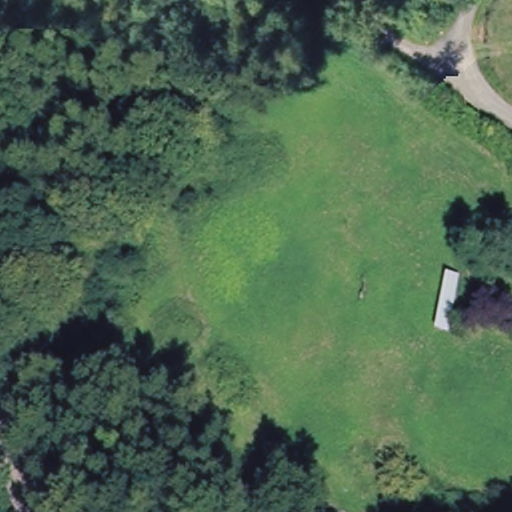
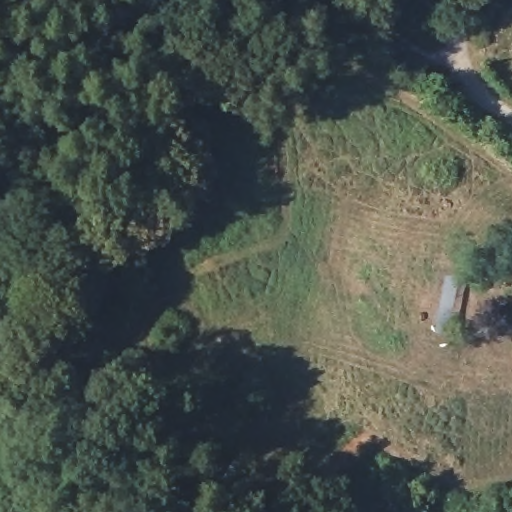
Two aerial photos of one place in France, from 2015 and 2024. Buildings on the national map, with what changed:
unchanged [(465,283),(450,339),(430,336),(442,274),(465,283)]

